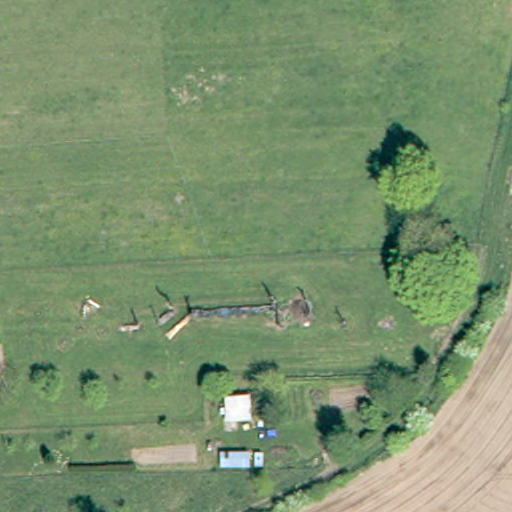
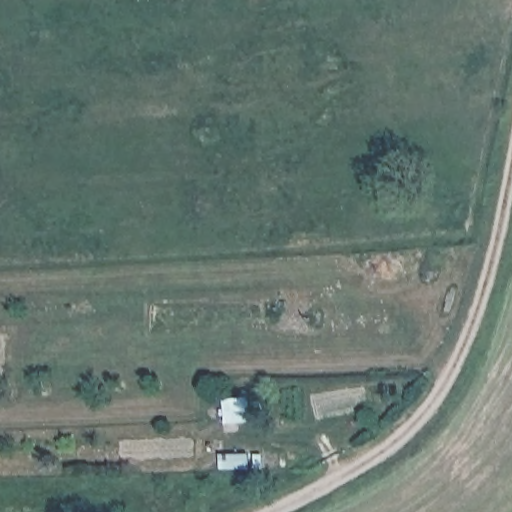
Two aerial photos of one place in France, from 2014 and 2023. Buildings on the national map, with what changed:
unchanged [(220,422),(219,401),(270,401),(270,422),(220,422)]

